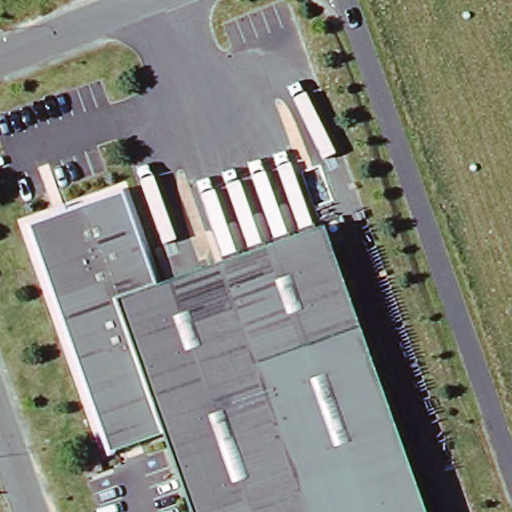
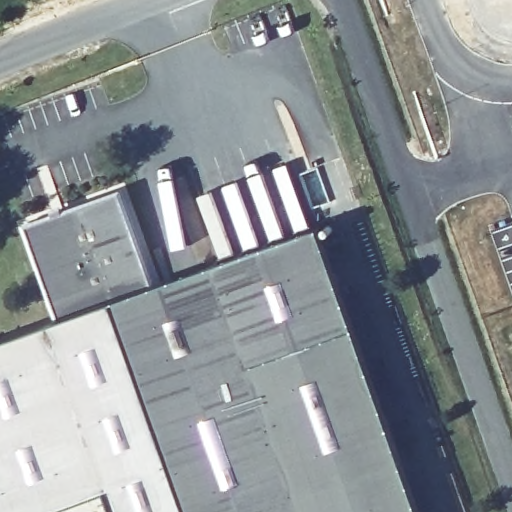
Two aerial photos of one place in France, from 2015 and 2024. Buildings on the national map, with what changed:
unchanged [(154,290),(324,233),(360,335),(256,368),(308,512),(192,512),(163,430),(110,448),(33,230),(121,199),(154,290)]
new [(64,318),(110,448),(163,430),(192,512),(117,512),(108,489),(43,512),(0,512),(0,340),(64,318)]
unchanged [(423,512),(308,512),(256,368),(360,335),(423,512)]

